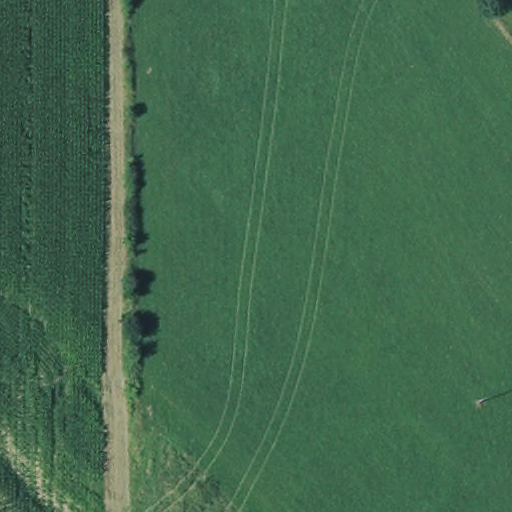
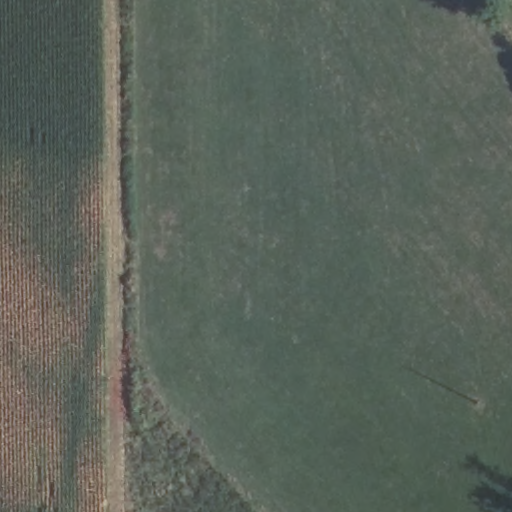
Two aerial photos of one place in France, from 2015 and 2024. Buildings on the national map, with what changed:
[]

